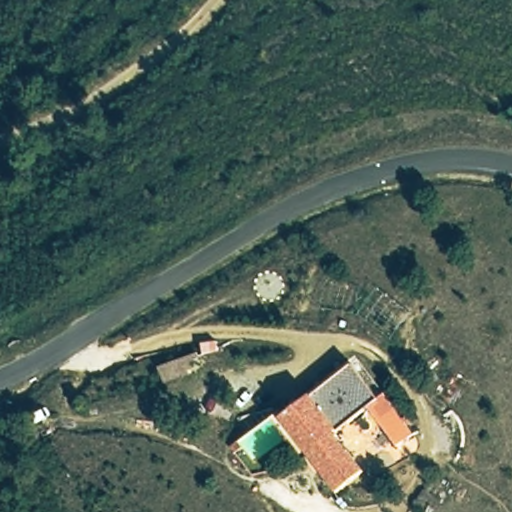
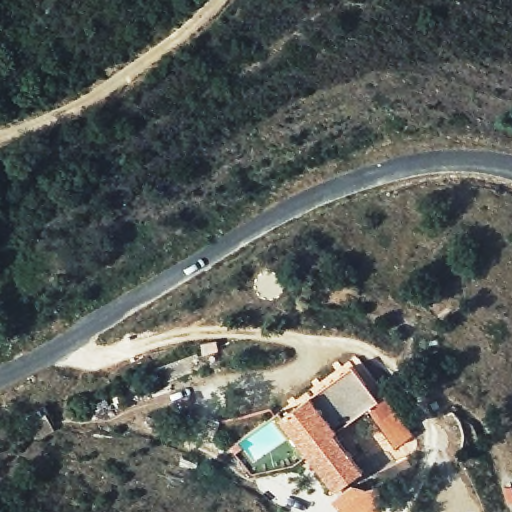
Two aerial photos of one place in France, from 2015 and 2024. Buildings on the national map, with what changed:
unchanged [(350,369),(376,402),(382,399),(409,439),(393,447),(365,409),(329,431),(357,473),(326,493),(276,419),(350,369)]

